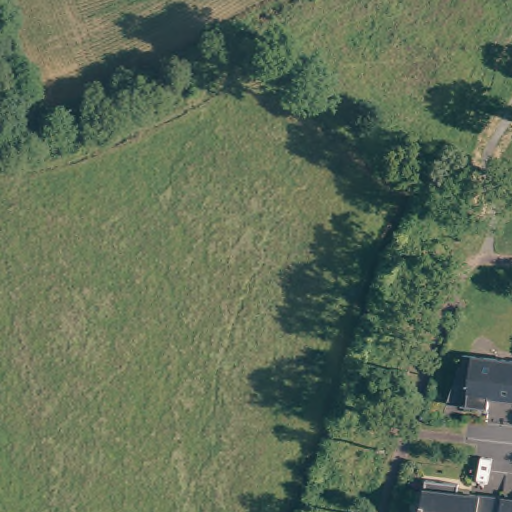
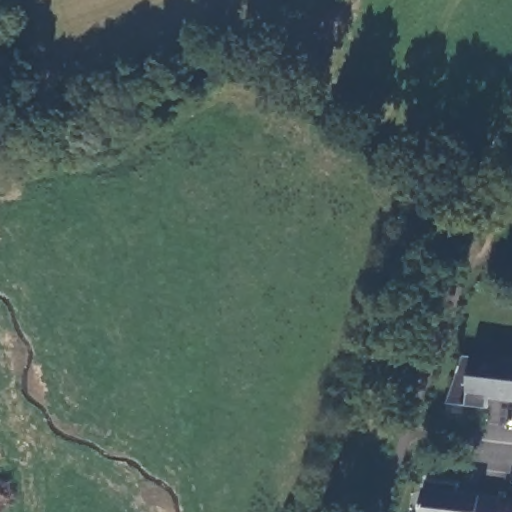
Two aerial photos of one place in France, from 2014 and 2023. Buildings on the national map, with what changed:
unchanged [(504,401),(505,397),(492,395),(490,409),(448,404),(465,356),(512,361),(512,401),(504,401)]
unchanged [(427,480),(461,484),(459,496),(471,497),(472,495),(504,499),(503,507),(503,509),(503,512),(424,512),(427,480)]
unchanged [(512,499),(512,512),(503,512),(503,509),(503,507),(504,499),(512,499)]

